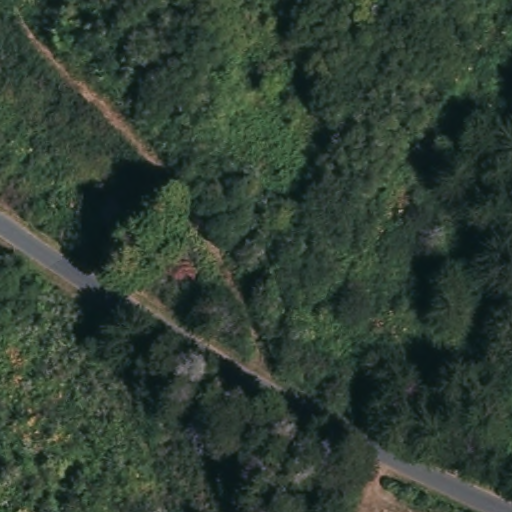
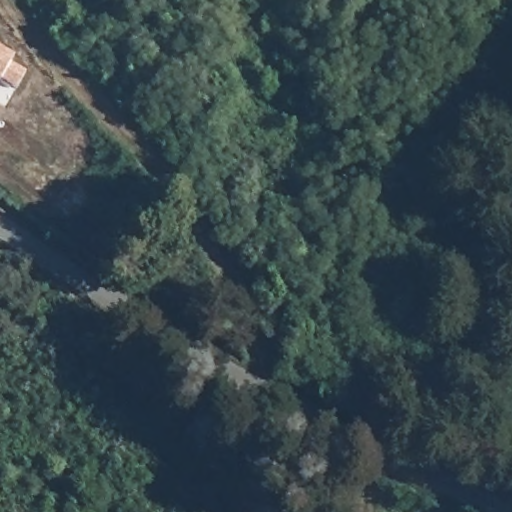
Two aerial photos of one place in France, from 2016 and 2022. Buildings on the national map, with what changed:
new [(13,64),(28,74),(19,90),(4,80),(3,82),(0,81),(0,47),(16,57),(13,64)]

